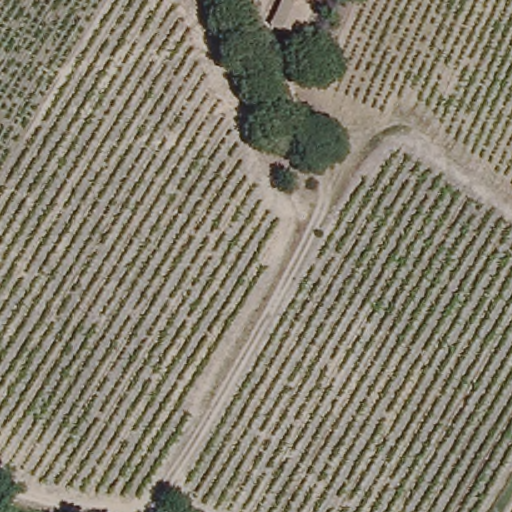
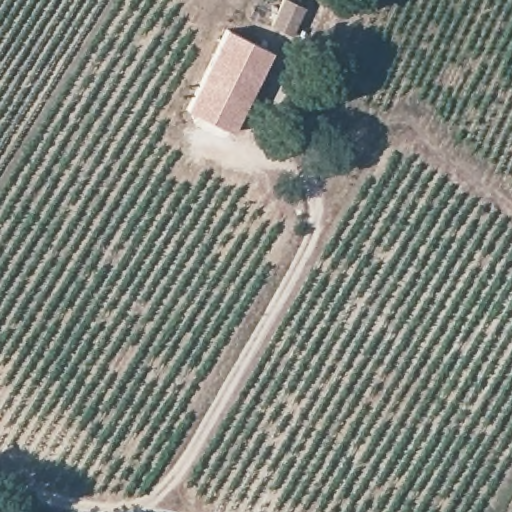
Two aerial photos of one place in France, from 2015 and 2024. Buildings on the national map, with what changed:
unchanged [(298,9),(285,35),(267,26),(280,1),(298,9)]
new [(233,22),(276,46),(229,131),(186,108),(233,22)]

